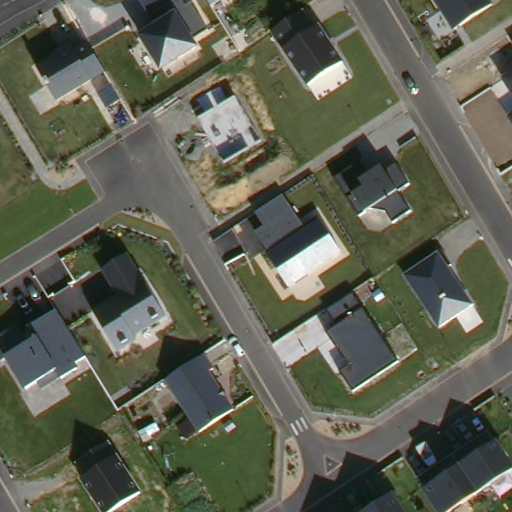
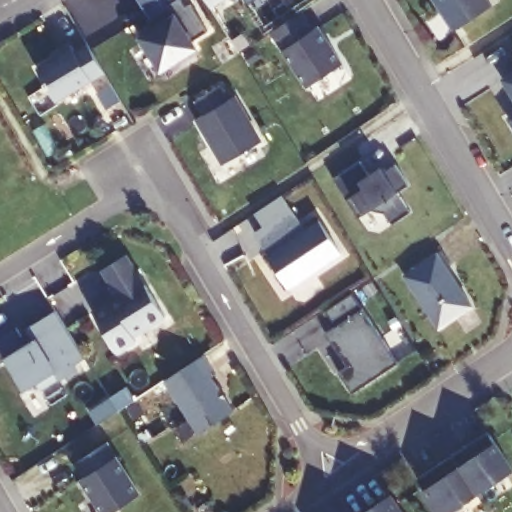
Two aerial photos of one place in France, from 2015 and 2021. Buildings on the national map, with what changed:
unchanged [(141,0),(183,0),(186,5),(194,2),(209,31),(196,38),(201,46),(164,69),(142,31),(154,24),(141,0)]
unchanged [(214,0),(221,0),(216,3),(214,0)]
unchanged [(489,0),(492,5),(453,31),(433,0),(489,0)]
unchanged [(282,50),(271,31),(306,7),(319,24),(343,62),(306,86),(282,50)]
unchanged [(87,36),(105,72),(59,100),(37,64),(87,36)]
unchanged [(500,78),(512,71),(512,97),(500,78)]
new [(230,99),(237,93),(265,140),(222,165),(195,120),(204,115),(195,100),(220,84),(230,99)]
unchanged [(507,117),(512,114),(512,124),(507,117)]
unchanged [(365,160),(371,170),(383,164),(388,169),(397,163),(410,183),(398,191),(412,210),(393,222),(379,204),(361,214),(338,177),(365,160)]
unchanged [(303,227),(317,219),(342,254),(290,288),(265,253),(268,251),(255,232),(263,226),(255,213),(282,195),(303,227)]
unchanged [(129,253),(166,315),(137,333),(140,338),(119,348),(95,311),(120,298),(103,267),(129,253)]
unchanged [(404,275),(437,253),(473,305),(439,327),(404,275)]
unchanged [(327,332),(336,325),(327,309),(351,295),(362,310),(398,363),(353,393),(340,371),(348,366),(327,332)]
unchanged [(29,327),(56,309),(89,359),(60,377),(55,371),(25,390),(13,368),(9,370),(0,355),(0,335),(23,322),(29,327)]
unchanged [(165,381),(208,353),(216,365),(212,370),(235,410),(200,431),(165,381)]
unchanged [(491,427),(512,460),(512,469),(451,512),(443,512),(417,477),(491,427)]
unchanged [(80,479),(85,476),(76,463),(107,442),(118,456),(141,492),(111,512),(102,512),(80,479)]
unchanged [(395,491),(408,512),(364,512),(395,491)]

